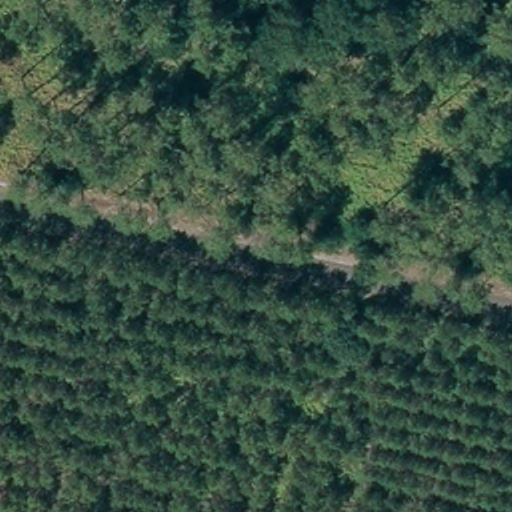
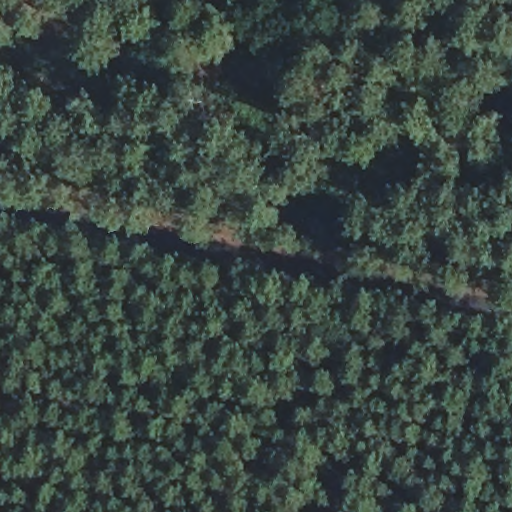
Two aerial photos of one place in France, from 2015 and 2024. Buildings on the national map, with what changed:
unchanged [(246,9),(249,0),(328,0),(314,36),(246,9)]

